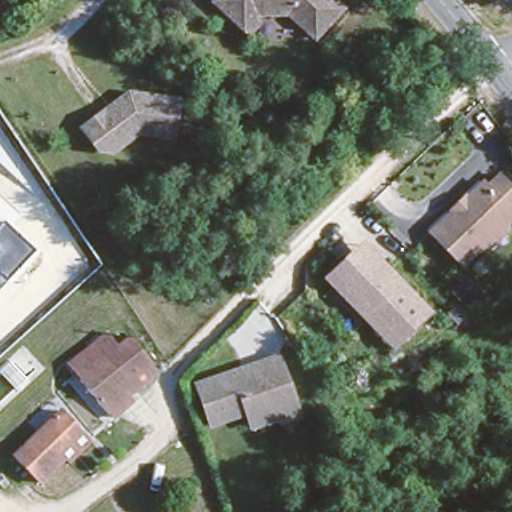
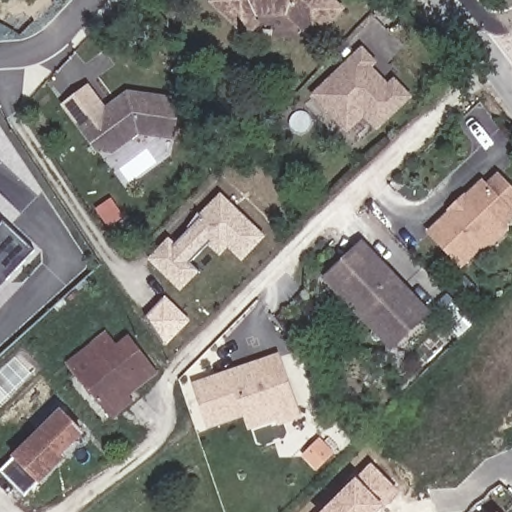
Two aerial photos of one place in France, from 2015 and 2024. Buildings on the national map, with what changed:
unchanged [(241,37),(232,27),(206,0),(282,0),(252,8),(244,14),(254,25),(241,37)]
unchanged [(319,22),(297,0),(342,0),(319,22)]
new [(311,95),(362,46),(379,63),(374,67),(389,84),(394,79),(413,98),(378,132),(365,118),(348,134),(311,95)]
unchanged [(173,96),(169,134),(134,130),(109,150),(93,149),(76,126),(122,90),(173,96)]
unchanged [(481,255),(474,255),(462,267),(430,234),(451,212),(465,199),(481,182),(485,186),(495,176),(497,175),(512,190),(512,208),(510,210),(512,213),(512,216),(511,217),(506,223),(504,231),(481,255)]
new [(170,245),(175,249),(222,200),(263,240),(244,260),(230,247),(221,255),(212,246),(192,266),(199,273),(182,290),(153,262),(170,245)]
unchanged [(0,224),(3,221),(35,251),(0,287),(0,224)]
unchanged [(336,274),(359,253),(365,247),(375,258),(404,288),(428,314),(421,320),(398,342),(393,347),(330,279),(336,274)]
unchanged [(115,340),(127,330),(151,358),(126,383),(131,387),(110,407),(66,363),(103,327),(115,340)]
unchanged [(264,367),(280,363),(295,423),(279,427),(274,411),(270,409),(208,425),(198,385),(243,373),(264,367)]
unchanged [(63,467),(56,461),(38,479),(12,455),(57,412),(74,429),(88,442),(63,467)]
new [(301,456),(320,438),(336,454),(317,472),(301,456)]
new [(380,512),(324,512),(371,464),(400,492),(380,512)]

